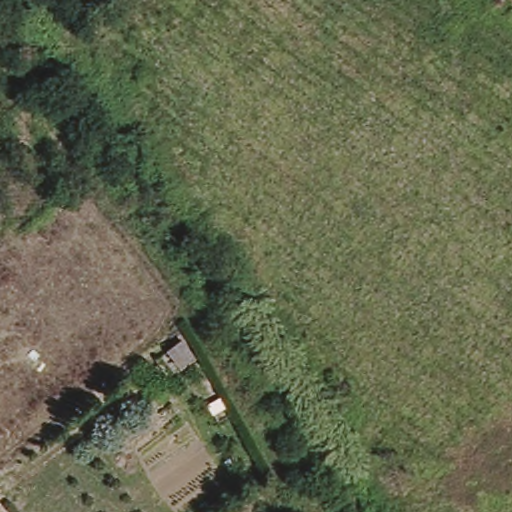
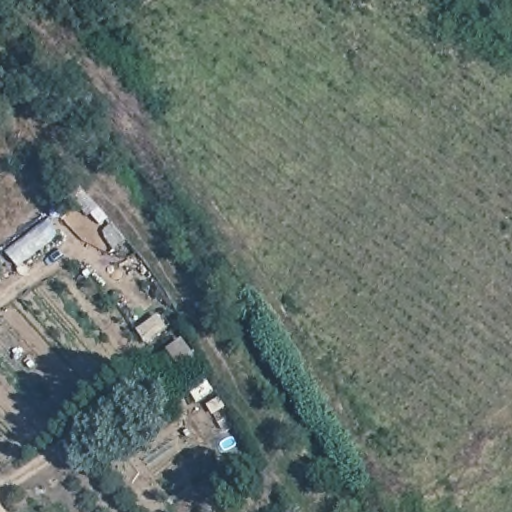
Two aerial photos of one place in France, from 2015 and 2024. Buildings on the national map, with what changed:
unchanged [(164,352),(181,339),(198,357),(181,371),(164,352)]

